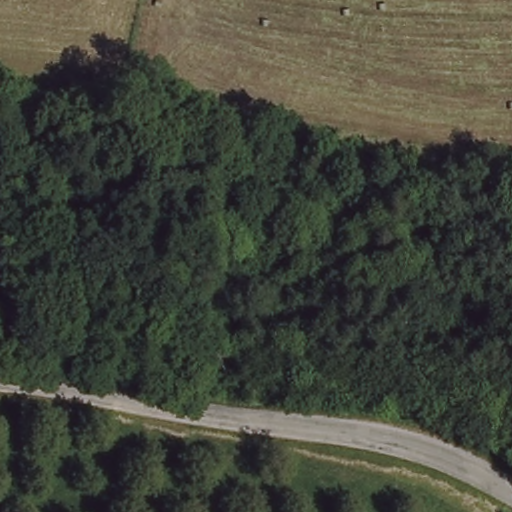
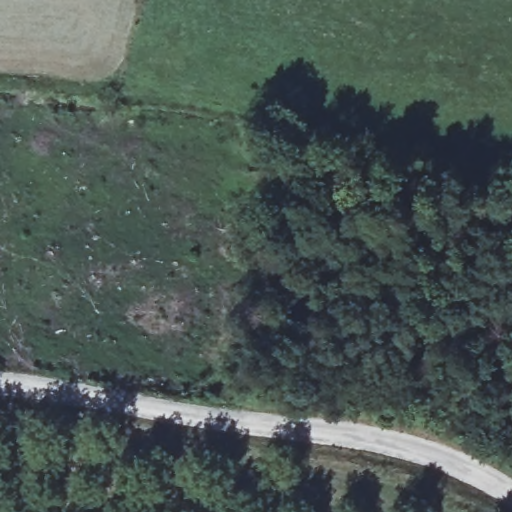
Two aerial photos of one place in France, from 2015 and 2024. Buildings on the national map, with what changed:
[]

